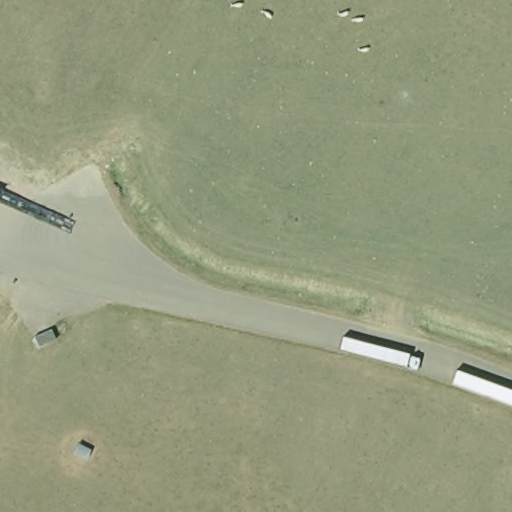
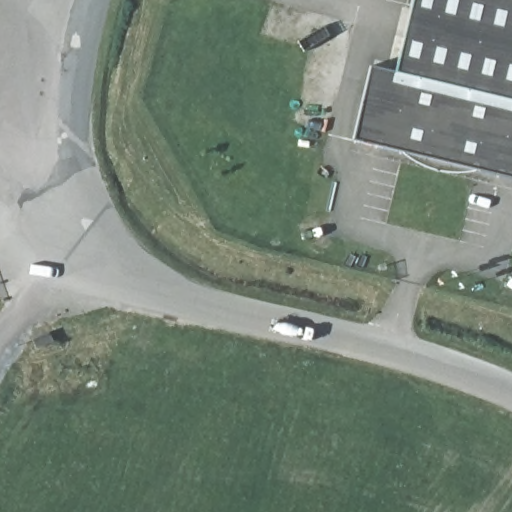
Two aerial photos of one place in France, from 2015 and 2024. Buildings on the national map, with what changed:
unchanged [(401,42),(411,0),(512,0),(512,70),(499,66),(401,42)]
new [(352,141),(370,66),(394,72),(401,42),(499,66),(473,170),(352,141)]
new [(473,170),(499,66),(512,70),(512,180),(473,170)]
new [(52,342),(35,349),(31,339),(48,332),(52,342)]

